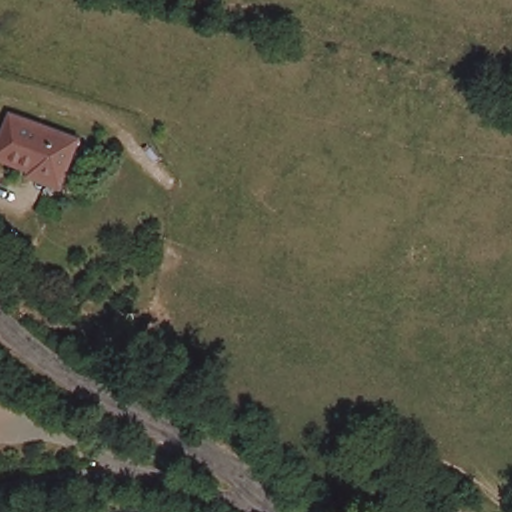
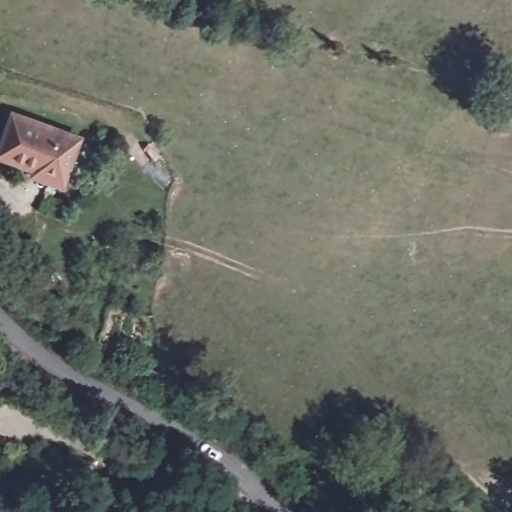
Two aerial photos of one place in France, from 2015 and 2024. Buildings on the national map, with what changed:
unchanged [(34,175),(36,169),(0,155),(0,149),(12,115),(80,140),(68,171),(63,185),(34,175)]

